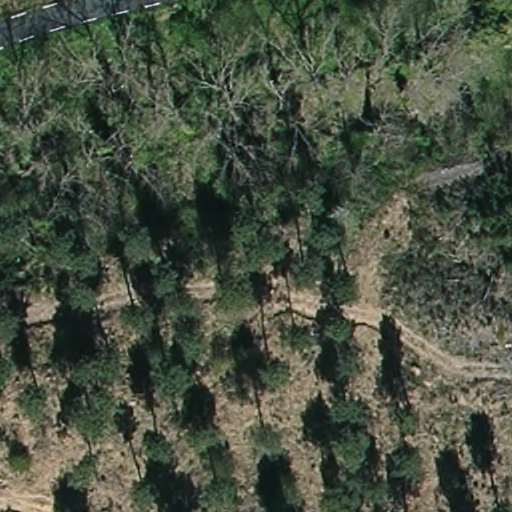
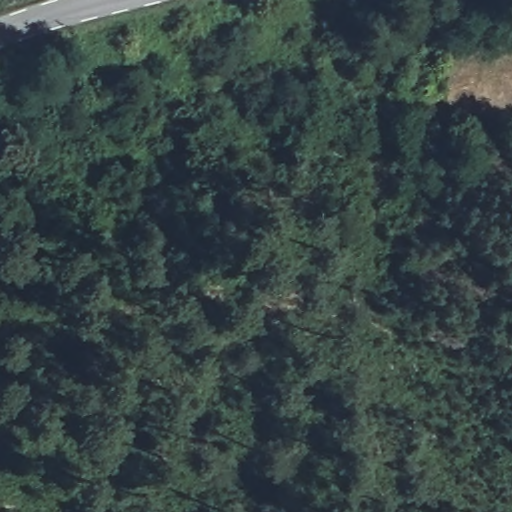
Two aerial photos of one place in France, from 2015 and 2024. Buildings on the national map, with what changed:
[]

